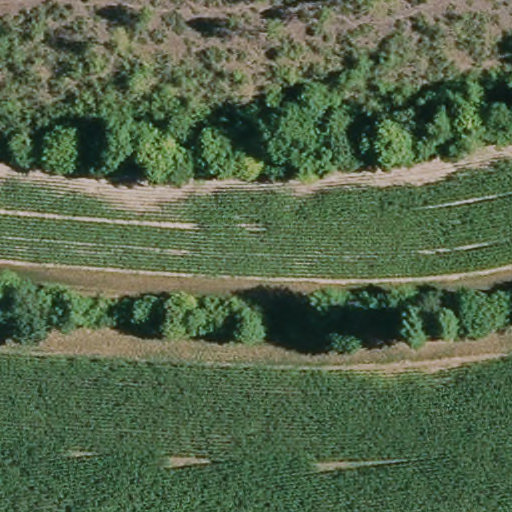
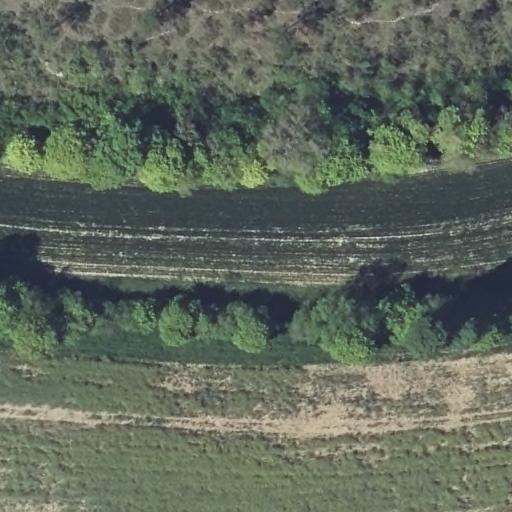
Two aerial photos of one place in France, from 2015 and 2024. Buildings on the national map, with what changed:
[]

